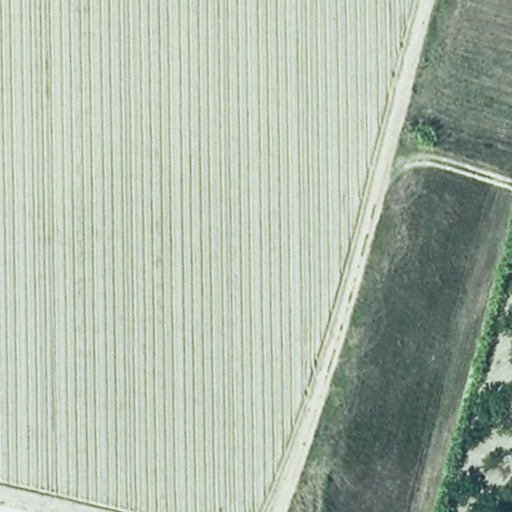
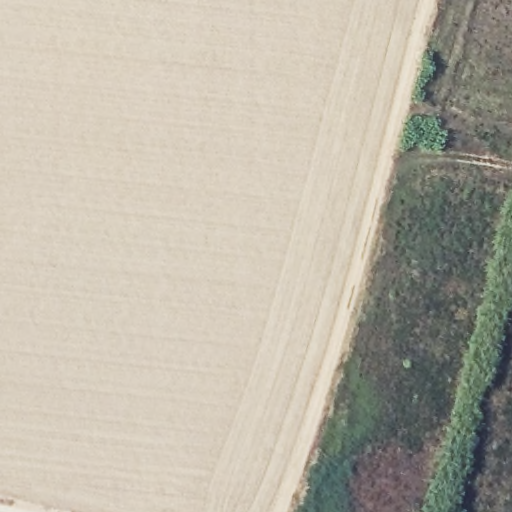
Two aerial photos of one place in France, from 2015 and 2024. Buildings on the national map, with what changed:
[]

